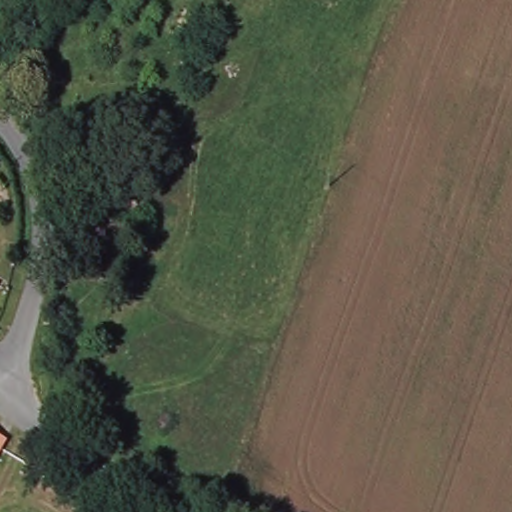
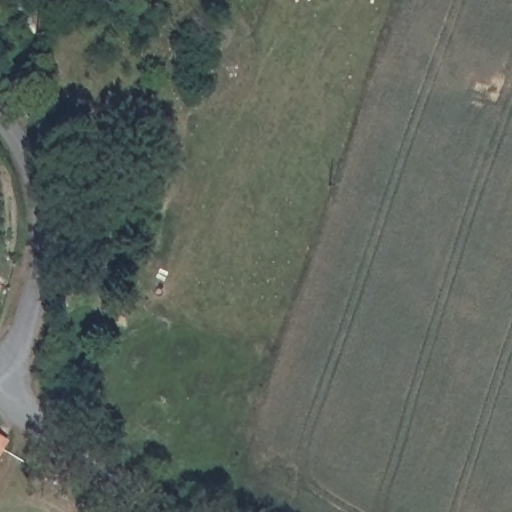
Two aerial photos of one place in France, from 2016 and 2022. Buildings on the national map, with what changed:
unchanged [(6,286),(0,295),(0,282),(6,286)]
unchanged [(12,447),(0,466),(0,440),(12,447)]

